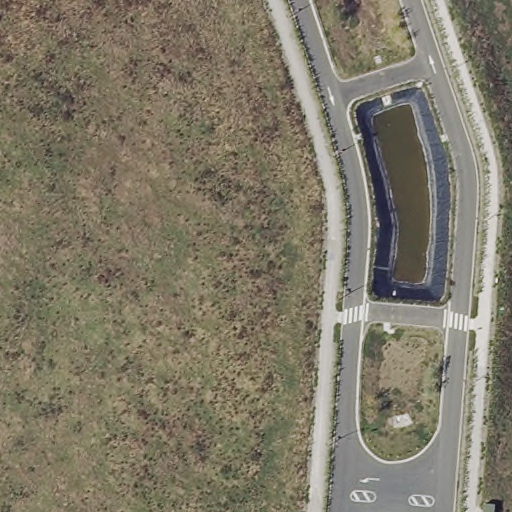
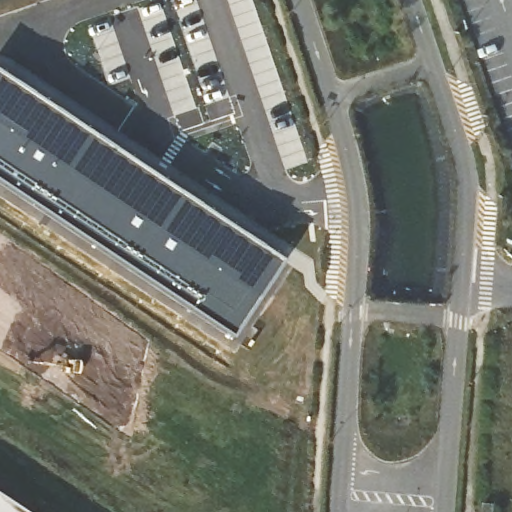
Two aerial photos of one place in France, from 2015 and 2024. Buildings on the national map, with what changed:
new [(234,337),(0,182),(0,74),(282,262),(234,337)]
unchanged [(0,512),(0,496),(24,512),(0,512)]

